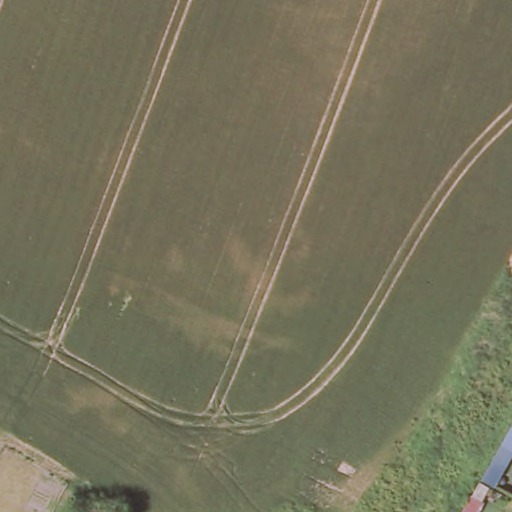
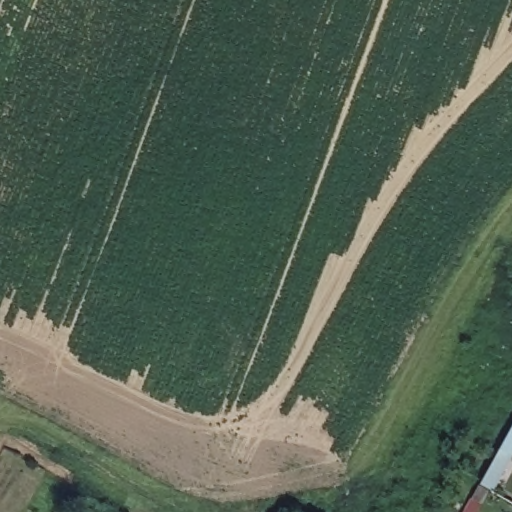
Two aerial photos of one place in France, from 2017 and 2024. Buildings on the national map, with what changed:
unchanged [(489,490),(478,484),(512,423),(512,450),(489,490)]

